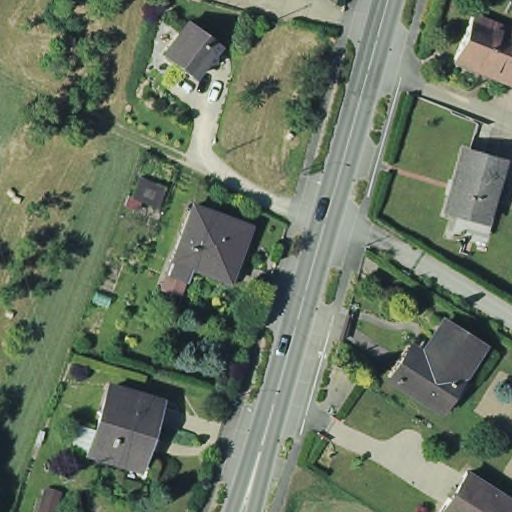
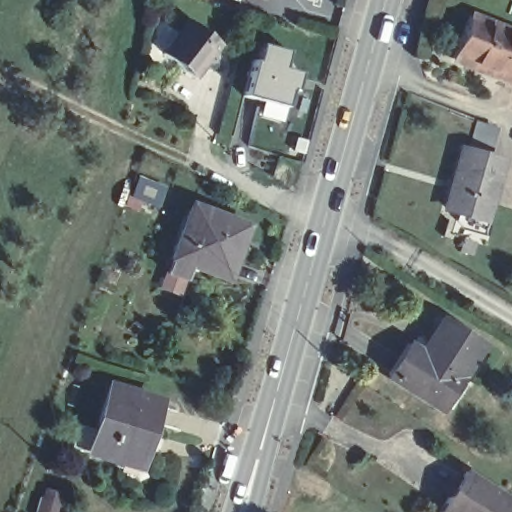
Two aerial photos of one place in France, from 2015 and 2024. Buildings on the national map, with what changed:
unchanged [(213,42),(207,51),(209,52),(211,62),(201,62),(199,61),(188,75),(157,51),(182,19),(213,42)]
unchanged [(503,80),(472,68),(472,64),(452,56),(467,19),(512,36),(512,56),(503,80)]
new [(244,95),(252,61),(256,61),(260,45),(287,51),(284,69),(301,72),(295,94),(290,92),(286,106),(244,95)]
unchanged [(503,80),(512,56),(512,83),(503,80)]
unchanged [(503,169),(487,225),(449,214),(464,158),(503,169)]
unchanged [(239,230),(221,282),(166,262),(185,210),(239,230)]
unchanged [(482,348),(444,412),(396,383),(409,360),(420,366),(445,326),(482,348)]
unchanged [(90,448),(111,385),(161,399),(139,463),(90,448)]
unchanged [(512,502),(506,512),(435,512),(446,495),(449,496),(465,472),(512,502)]

